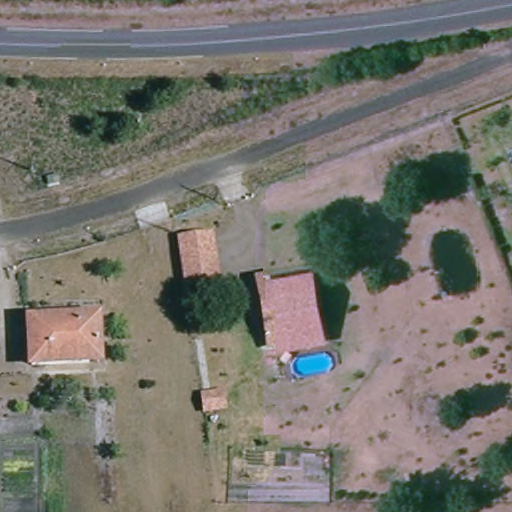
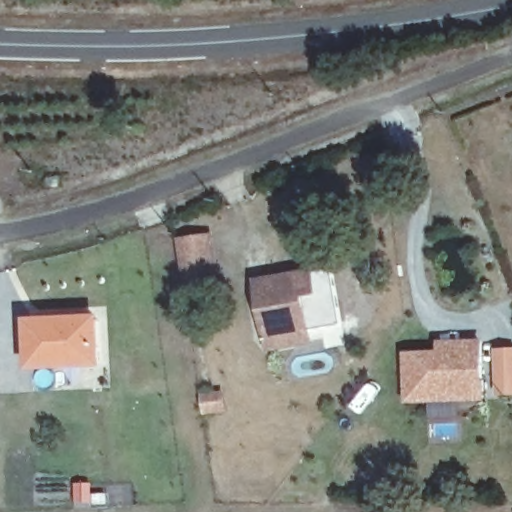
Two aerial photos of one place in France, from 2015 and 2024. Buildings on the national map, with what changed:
unchanged [(181,239),(215,234),(220,286),(187,289),(181,239)]
unchanged [(323,344),(266,346),(262,279),(271,278),(316,275),(319,310),(323,344)]
unchanged [(90,317),(91,360),(23,365),(24,320),(90,317)]
new [(437,349),(436,341),(483,339),(484,401),(403,402),(402,352),(437,349)]
new [(512,395),(496,395),(494,347),(512,347),(512,395)]

